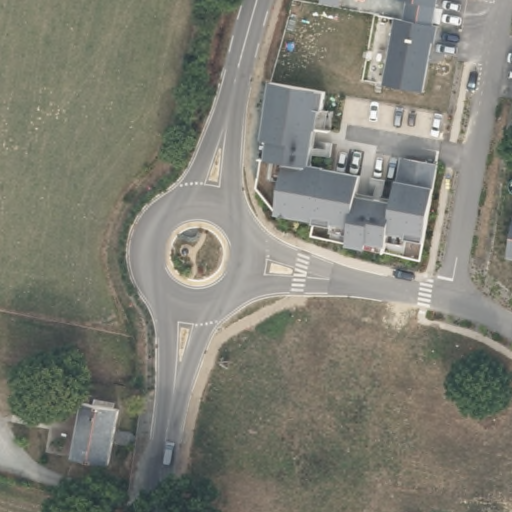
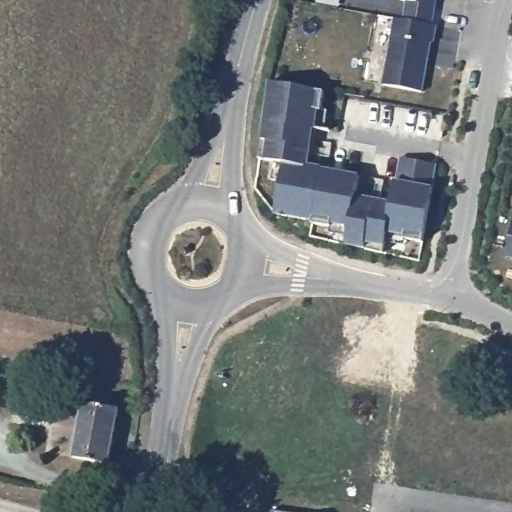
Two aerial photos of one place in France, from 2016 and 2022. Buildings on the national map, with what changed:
unchanged [(436,8),(402,0),(437,0),(436,8)]
unchanged [(439,24),(422,94),(384,87),(398,17),(439,24)]
unchanged [(442,158),(425,240),(388,234),(387,247),(342,244),(346,226),(276,214),(285,169),(259,159),(272,82),(327,90),(312,165),(362,174),(360,194),(391,199),(402,154),(442,158)]
unchanged [(506,256),(512,230),(512,258),(506,256)]
unchanged [(109,465),(75,459),(82,404),(117,410),(109,465)]

